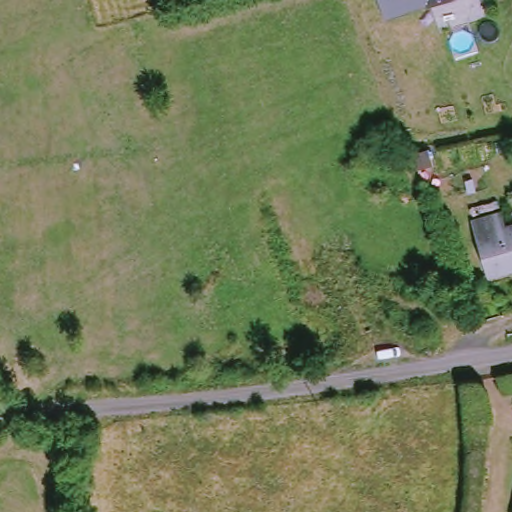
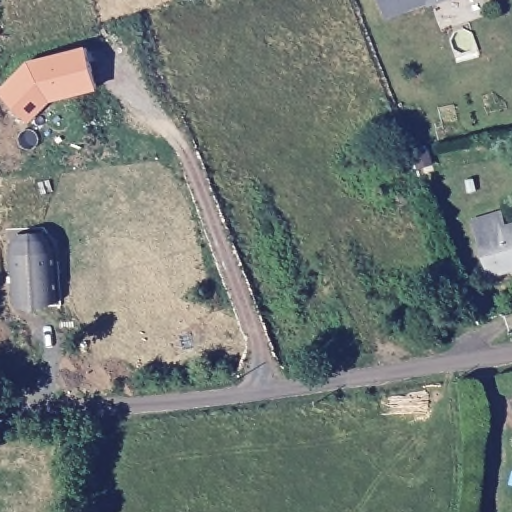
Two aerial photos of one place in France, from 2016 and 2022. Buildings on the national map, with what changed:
unchanged [(390,11),(385,0),(422,0),(390,11)]
unchanged [(433,1),(433,0),(436,0),(433,1)]
new [(84,50),(95,89),(47,102),(25,125),(0,101),(0,91),(25,66),(84,50)]
unchanged [(477,236),(474,221),(502,214),(506,228),(512,227),(512,268),(487,273),(477,236)]

